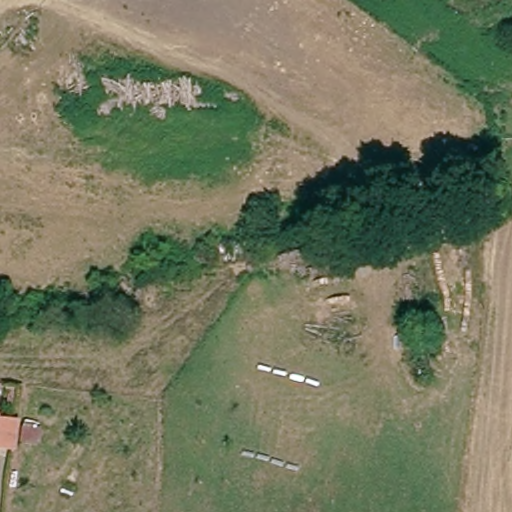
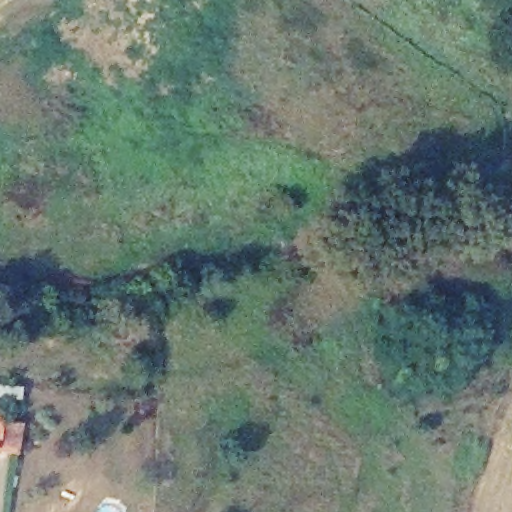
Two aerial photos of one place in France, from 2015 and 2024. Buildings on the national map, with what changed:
unchanged [(0,452),(0,422),(34,426),(29,455),(0,452)]

